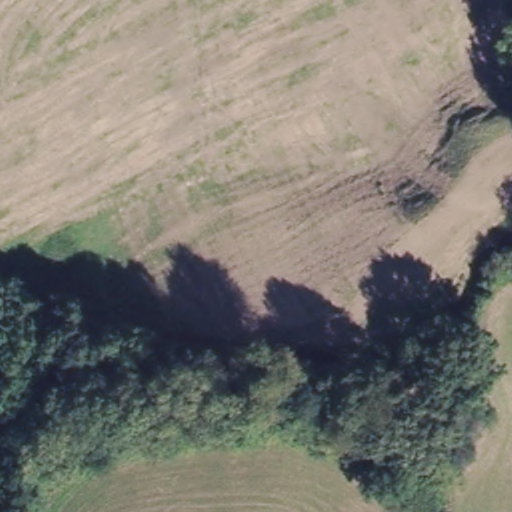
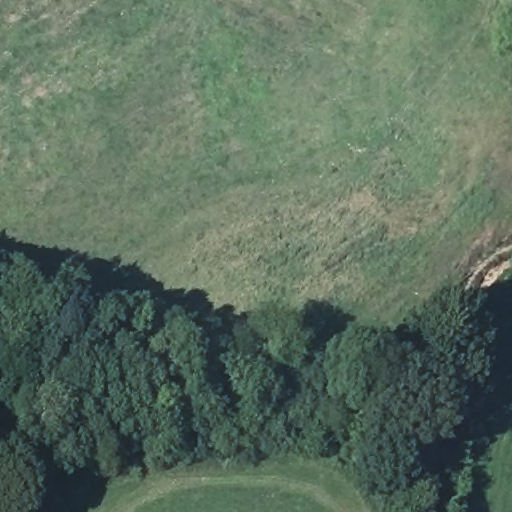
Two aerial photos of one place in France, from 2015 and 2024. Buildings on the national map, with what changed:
[]

